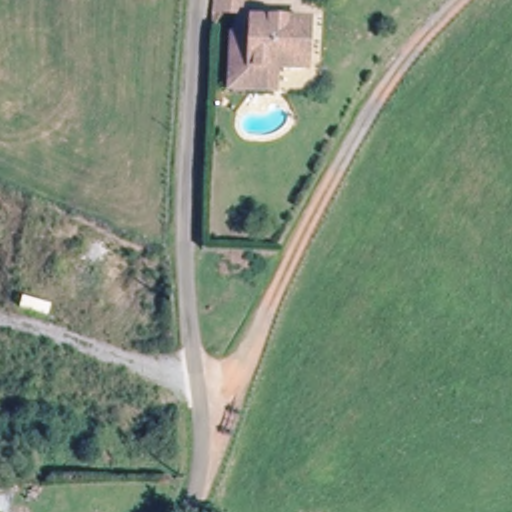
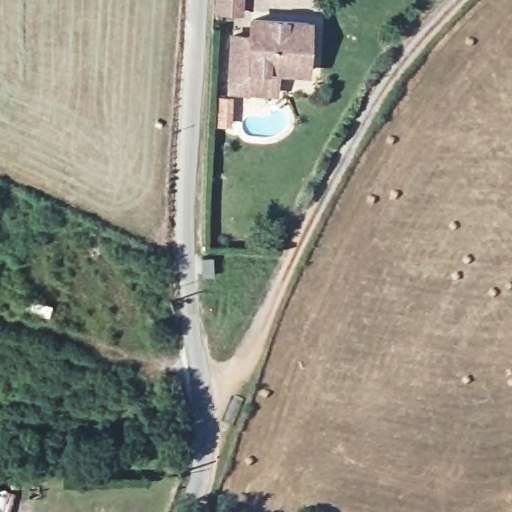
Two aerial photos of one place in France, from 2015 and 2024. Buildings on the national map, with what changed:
unchanged [(237,18),(209,16),(211,0),(239,0),(237,18)]
unchanged [(305,15),(307,62),(275,62),(272,16),(305,15)]
unchanged [(227,86),(227,35),(254,36),(254,16),(272,16),(275,62),(278,86),(227,86)]

